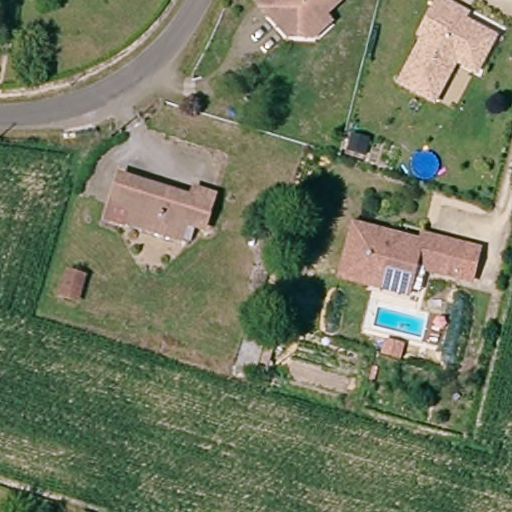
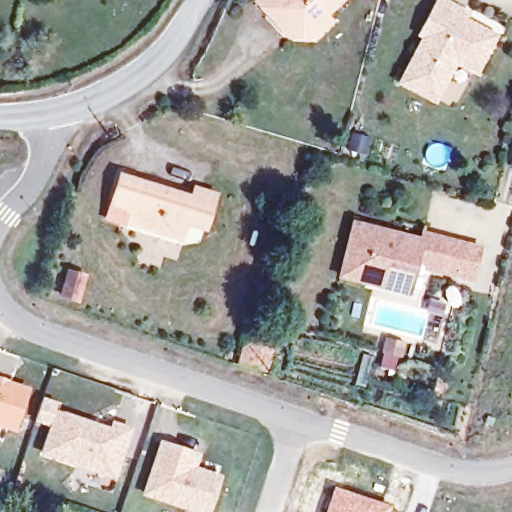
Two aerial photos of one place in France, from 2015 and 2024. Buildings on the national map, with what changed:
unchanged [(327,21),(314,34),(291,35),(270,13),(258,2),(259,0),(336,0),(331,6),(325,12),(328,15),(331,17),(327,21)]
unchanged [(432,98),(399,81),(421,38),(415,35),(433,0),(442,0),(463,11),(460,18),(492,35),(481,57),(476,67),(454,57),(432,98)]
unchanged [(153,233),(118,224),(100,219),(103,206),(111,176),(129,181),(131,182),(183,196),(185,189),(205,194),(195,231),(175,225),(172,238),(153,233)]
unchanged [(340,269),(354,218),(392,229),(391,234),(401,237),(403,231),(421,236),(423,228),(463,239),(453,276),(424,268),(425,265),(415,262),(415,264),(408,288),(369,277),(340,269)]
unchanged [(93,273),(86,296),(71,292),(78,268),(93,273)]
new [(31,388),(17,433),(0,428),(0,377),(31,388)]
new [(58,406),(55,413),(111,432),(114,425),(129,431),(113,476),(105,473),(100,490),(82,485),(71,495),(61,485),(73,472),(76,464),(44,453),(53,425),(36,420),(42,401),(58,406)]
new [(195,457),(191,470),(218,478),(207,512),(181,512),(184,506),(146,495),(163,445),(195,457)]
new [(333,487),(391,505),(388,512),(325,512),(333,487)]

